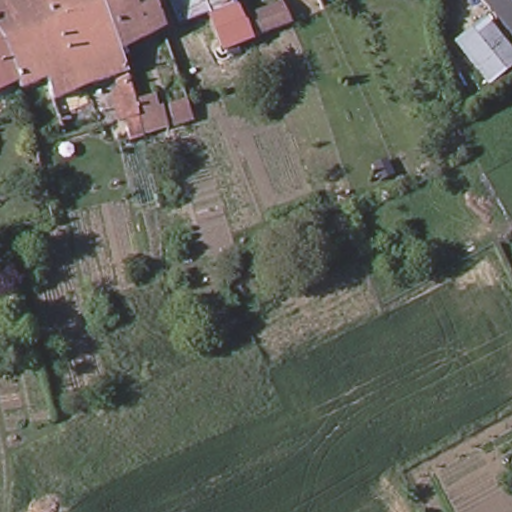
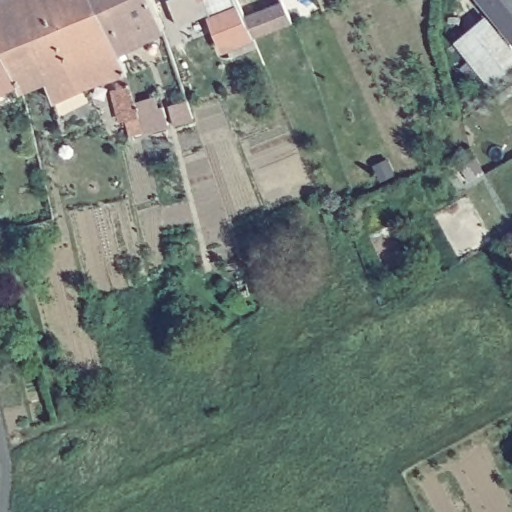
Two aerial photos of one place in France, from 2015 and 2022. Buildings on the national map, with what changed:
unchanged [(94,0),(117,55),(126,76),(139,119),(140,121),(127,125),(115,84),(116,84),(115,80),(81,91),(52,107),(45,85),(20,93),(18,86),(10,66),(0,48),(0,7),(13,0),(94,0)]
unchanged [(117,55),(94,0),(150,0),(163,32),(117,55)]
unchanged [(253,42),(226,52),(207,11),(163,32),(150,0),(235,0),(245,21),(253,42)]
unchanged [(510,28),(487,0),(512,0),(512,30),(510,28)]
unchanged [(252,36),(247,15),(283,1),(291,23),(255,40),(252,36)]
unchanged [(484,19),(512,52),(512,59),(487,80),(455,42),(484,19)]
unchanged [(18,86),(0,94),(0,48),(10,66),(18,86)]
unchanged [(187,104),(193,121),(175,127),(170,110),(187,104)]
unchanged [(163,111),(169,129),(144,137),(140,119),(163,111)]

